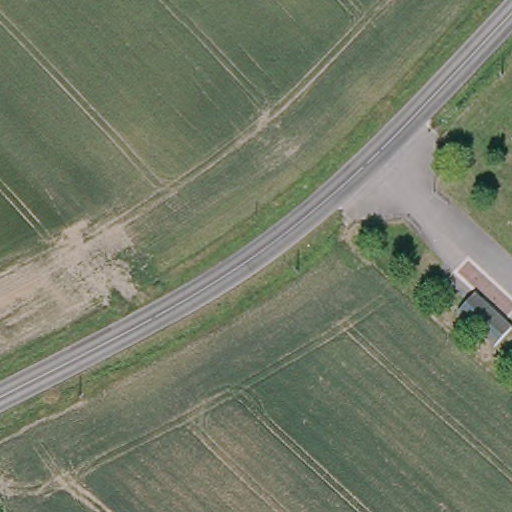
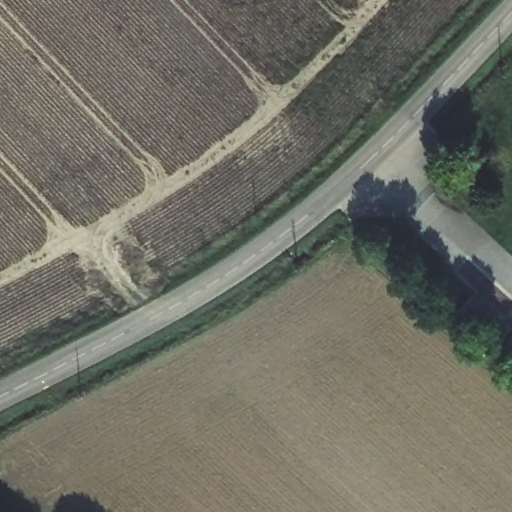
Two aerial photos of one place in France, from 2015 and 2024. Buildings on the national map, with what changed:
unchanged [(475,288),(512,324),(492,341),(457,306),(475,288)]

